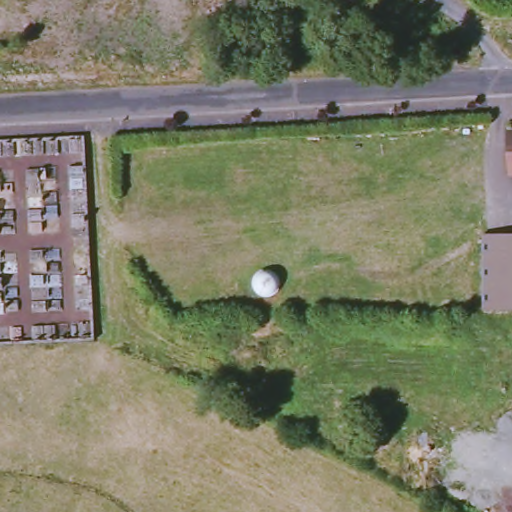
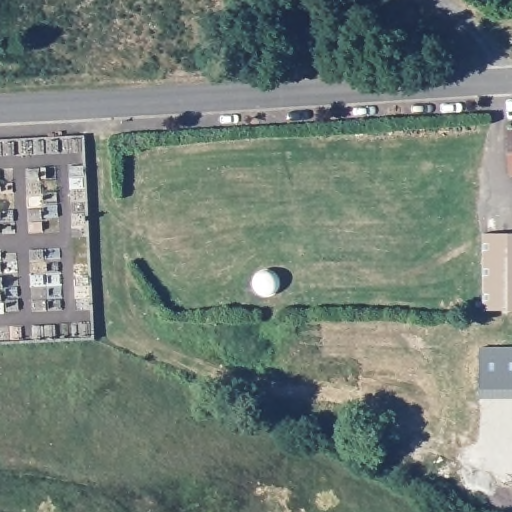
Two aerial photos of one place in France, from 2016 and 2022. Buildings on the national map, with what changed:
unchanged [(487,316),(485,236),(512,238),(512,316),(487,316)]
unchanged [(277,276),(280,284),(278,295),(268,299),(258,299),(252,291),(250,282),(257,272),(268,269),(277,276)]
new [(512,349),(512,399),(480,399),(480,349),(512,349)]

